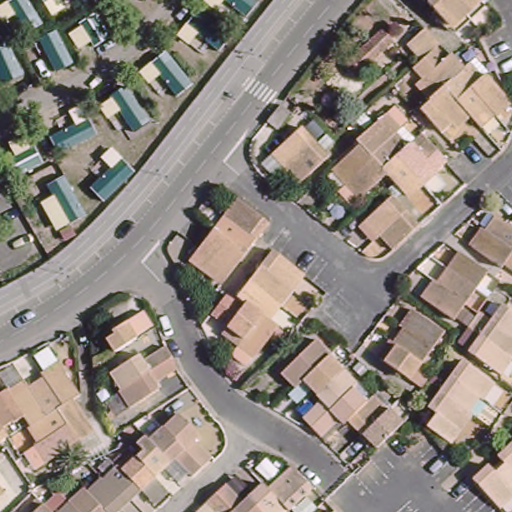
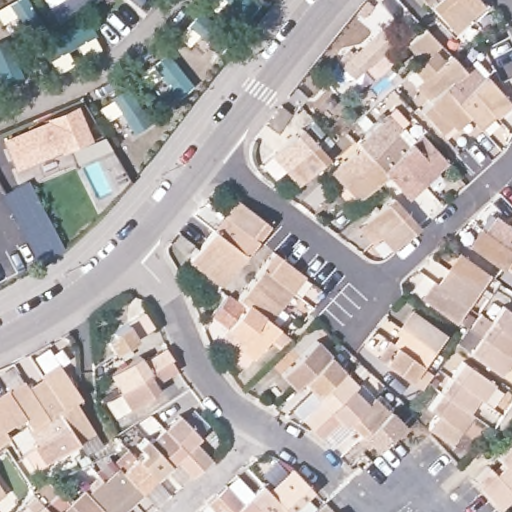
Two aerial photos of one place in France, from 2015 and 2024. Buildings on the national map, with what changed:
unchanged [(466,18),(451,32),(445,26),(434,15),(423,2),(422,0),(475,0),(479,5),(466,18)]
unchanged [(442,131),(420,108),(438,92),(425,78),(427,75),(416,64),(427,54),(413,40),(427,27),(440,42),(434,47),(444,58),(451,53),(457,59),(466,68),(469,64),(482,77),(486,73),(510,101),(495,114),(492,111),(479,124),(469,113),(454,126),(451,123),(442,131)]
unchanged [(393,39),(355,74),(346,65),(384,29),(393,39)]
new [(14,170),(0,136),(78,104),(93,140),(66,151),(59,152),(14,170)]
unchanged [(268,121),(281,104),(290,111),(277,128),(268,121)]
unchanged [(350,158),(360,149),(358,145),(384,120),(399,134),(394,139),(406,151),(412,146),(419,152),(428,144),(448,165),(447,167),(439,175),(436,172),(421,186),(408,199),(387,177),(361,201),(347,186),(334,172),(350,158)]
unchanged [(302,180),(288,165),(276,152),(303,127),(315,140),(329,155),(302,180)]
new [(0,193),(28,179),(65,250),(38,264),(0,193)]
unchanged [(201,246),(214,228),(216,230),(228,215),(240,200),(269,223),(258,237),(246,253),(224,281),(208,269),(191,257),(201,246)]
unchanged [(379,240),(365,225),(393,200),(406,215),(419,229),(394,251),(382,237),(379,240)]
unchanged [(504,268),(501,272),(471,250),(483,233),(487,236),(498,221),(511,230),(512,229),(512,273),(504,268)]
unchanged [(246,308),(238,301),(251,284),(261,271),(274,254),(303,278),(291,294),(280,307),(269,323),(279,330),(256,358),(241,346),(226,335),(246,308)]
unchanged [(424,303),(436,285),(439,288),(450,273),(461,258),(487,276),(476,292),(466,306),(453,324),(424,303)]
unchanged [(478,332),(487,319),(496,325),(507,309),(512,313),(512,357),(512,364),(503,376),(474,355),(486,338),(478,332)]
unchanged [(381,362),(392,346),(395,349),(406,334),(402,332),(414,316),(443,337),(432,353),(422,367),(410,383),(381,362)]
unchanged [(106,339),(111,336),(109,333),(125,322),(136,337),(114,351),(106,339)]
unchanged [(347,421),(343,424),(338,419),(321,436),(311,426),(303,417),(322,398),(318,394),(305,382),(298,388),(284,373),(319,340),(332,354),(331,356),(344,369),(357,382),(352,387),(366,401),(373,394),(388,409),(389,407),(402,418),(373,447),(369,443),(369,442),(366,446),(358,439),(361,435),(353,427),(347,421)]
unchanged [(156,387),(158,392),(129,412),(118,396),(121,394),(110,377),(141,358),(144,364),(167,350),(173,361),(170,363),(176,373),(156,387)]
unchanged [(440,390),(451,375),(462,360),(492,381),(480,396),(477,394),(466,408),(469,411),(447,440),(427,426),(436,413),(428,407),(440,390)]
unchanged [(40,441),(30,427),(32,425),(30,422),(25,415),(15,422),(14,420),(0,400),(0,396),(9,390),(10,391),(26,381),(30,387),(45,377),(43,373),(59,363),(81,393),(73,398),(93,428),(76,438),(78,440),(48,460),(36,444),(40,441)]
unchanged [(3,427),(9,436),(0,441),(0,400),(14,420),(3,427)]
unchanged [(102,476),(104,478),(118,465),(120,468),(136,454),(138,457),(144,451),(138,444),(146,437),(148,439),(164,425),(178,412),(199,435),(196,439),(212,458),(203,467),(193,476),(175,459),(170,463),(162,471),(156,476),(141,490),(136,495),(127,503),(121,508),(125,512),(108,512),(86,489),(102,476)]
unchanged [(472,484),(488,469),(495,476),(504,467),(497,460),(512,447),(512,446),(512,499),(499,512),(472,484)]
unchanged [(347,463),(361,450),(369,459),(355,471),(347,463)]
unchanged [(217,493),(226,484),(243,501),(248,496),(256,488),(263,482),(268,488),(291,467),(313,489),(289,510),(284,506),(278,512),(217,512),(207,502),(217,493)]
unchanged [(29,505),(38,496),(49,508),(53,504),(60,511),(69,502),(68,500),(83,486),(86,489),(108,512),(34,512),(35,511),(29,505)]
unchanged [(0,497),(0,491),(3,495),(0,497)]
unchanged [(342,512),(338,512),(340,510),(342,512)]

